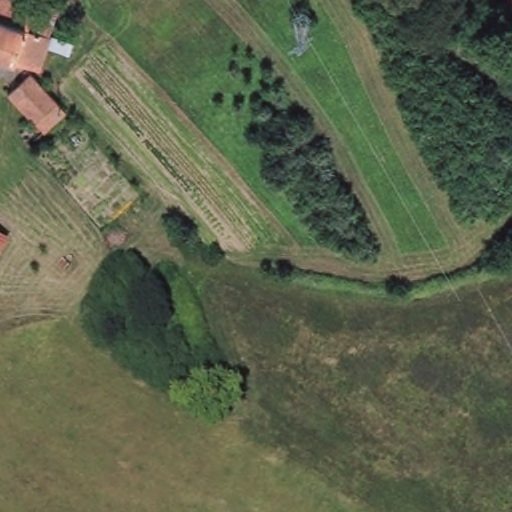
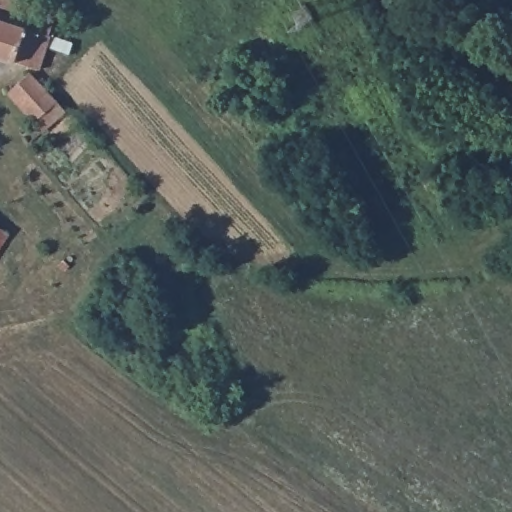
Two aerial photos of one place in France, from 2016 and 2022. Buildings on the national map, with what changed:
unchanged [(35,10),(36,2),(57,9),(49,38),(70,45),(66,56),(46,49),(39,75),(0,62),(0,0),(6,0),(35,10)]
unchanged [(29,76),(65,114),(41,134),(32,125),(7,95),(29,76)]
unchanged [(6,234),(0,244),(0,229),(6,234)]

